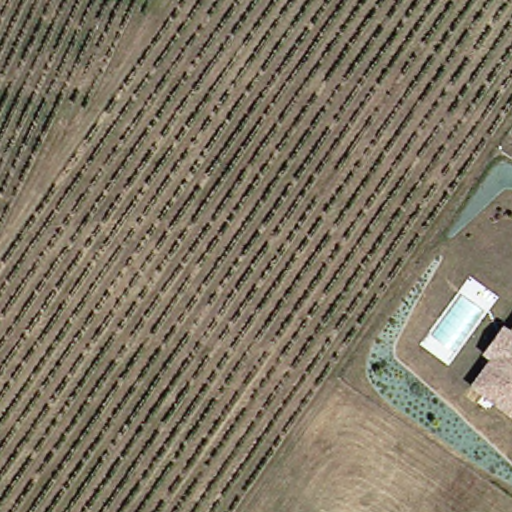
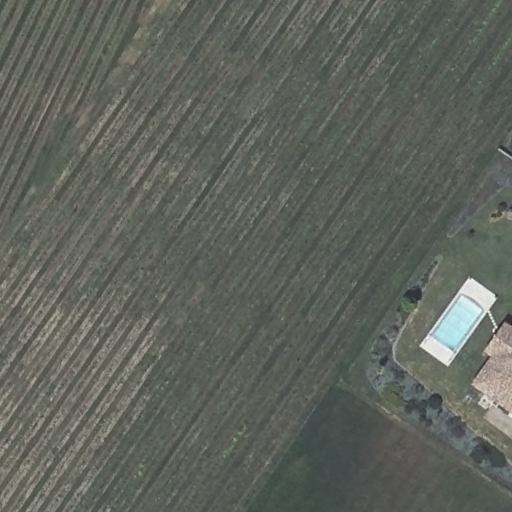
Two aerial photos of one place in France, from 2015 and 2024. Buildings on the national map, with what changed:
unchanged [(487,395),(475,386),(493,361),(483,353),(501,329),(508,333),(512,328),(512,418),(485,399),(487,395)]

